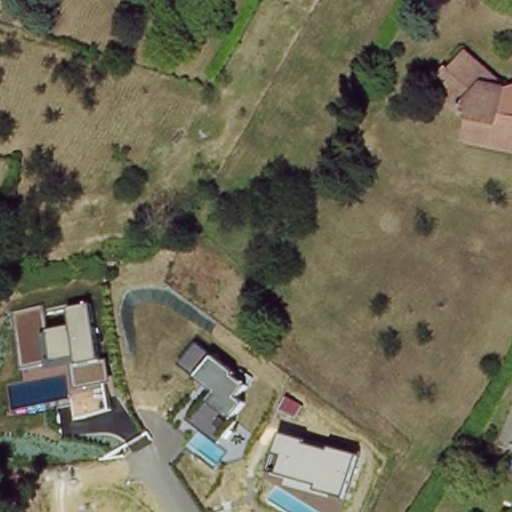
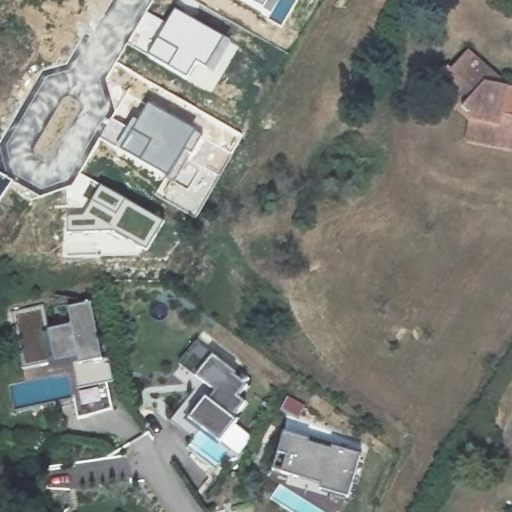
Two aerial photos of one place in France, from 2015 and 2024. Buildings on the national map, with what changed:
new [(270,19),(236,0),(280,0),(270,19)]
new [(145,11),(166,22),(174,9),(237,45),(211,92),(167,70),(145,56),(154,39),(147,35),(146,38),(134,31),(145,11)]
unchanged [(486,70),(481,77),(494,86),(512,83),(512,131),(502,128),(497,141),(469,135),(471,115),(442,92),(450,81),(441,74),(449,64),(454,67),(464,55),(486,70)]
new [(113,118),(130,128),(148,103),(204,133),(168,182),(163,179),(99,139),(113,118)]
new [(163,179),(168,182),(204,133),(234,153),(196,220),(154,195),(163,179)]
new [(112,229),(82,214),(89,199),(74,190),(80,175),(93,182),(92,184),(96,186),(127,201),(112,229)]
new [(127,201),(166,224),(147,257),(140,256),(141,251),(112,229),(127,201)]
new [(63,215),(67,215),(82,214),(112,229),(141,251),(140,256),(140,258),(62,259),(63,215)]
unchanged [(75,397),(80,396),(80,390),(76,366),(49,372),(48,362),(25,367),(14,311),(44,304),(51,331),(73,326),(70,308),(92,303),(104,361),(110,360),(113,384),(107,385),(111,411),(79,418),(75,397)]
unchanged [(196,342),(235,374),(233,377),(246,385),(237,398),(244,404),(232,421),(236,425),(222,444),(194,421),(217,392),(198,377),(180,364),(196,342)]
unchanged [(320,492),(323,485),(274,473),(285,435),(311,442),(310,445),(333,451),(334,448),(363,458),(352,501),(320,492)]

